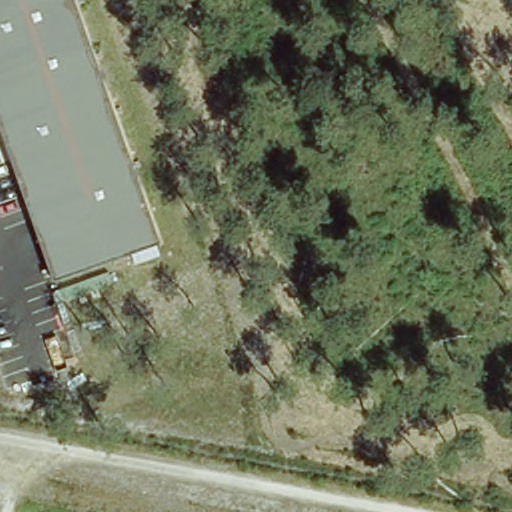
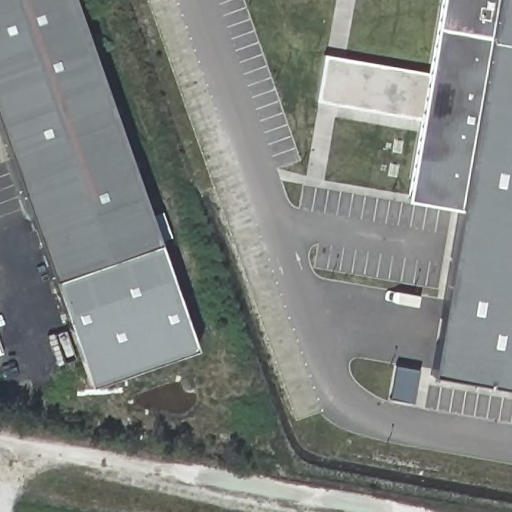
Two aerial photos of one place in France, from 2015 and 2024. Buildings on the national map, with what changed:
unchanged [(91,387),(0,133),(0,0),(71,0),(194,351),(91,387)]
new [(433,371),(461,207),(409,198),(423,115),(319,97),(327,50),(431,68),(443,0),(512,0),(512,384),(433,371)]

